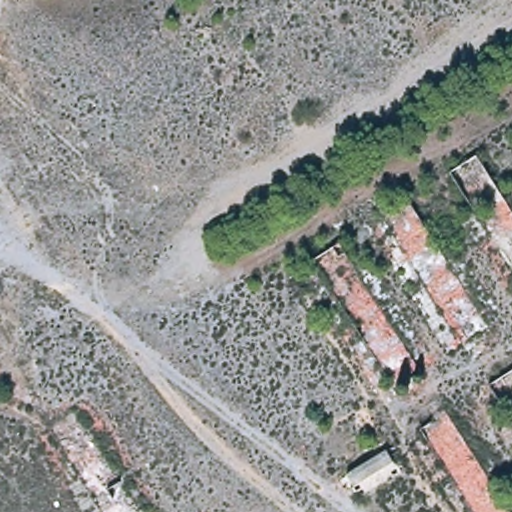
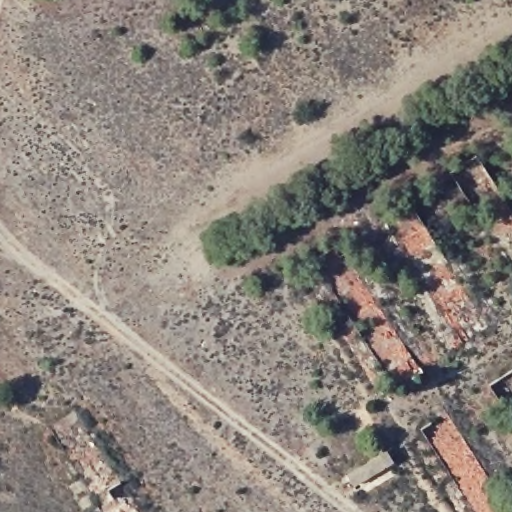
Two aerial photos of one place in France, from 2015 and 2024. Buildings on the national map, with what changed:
unchanged [(389,444),(398,460),(356,487),(346,471),(389,444)]

